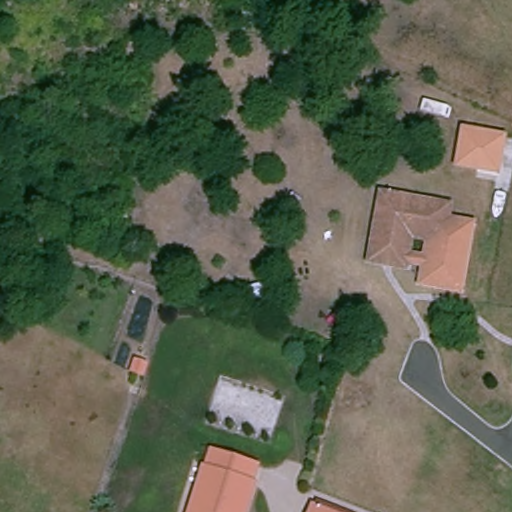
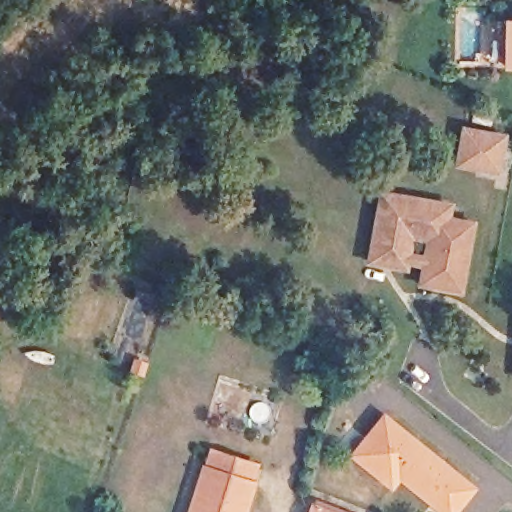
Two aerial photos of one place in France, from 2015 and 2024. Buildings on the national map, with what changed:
new [(512,68),(501,68),(502,17),(512,18),(512,68)]
unchanged [(507,135),(501,175),(456,169),(462,125),(507,135)]
unchanged [(377,190),(454,204),(452,215),(481,221),(467,297),(418,288),(420,266),(408,264),(407,272),(367,265),(377,190)]
new [(458,512),(438,512),(399,481),(391,490),(348,455),(383,410),(477,487),(458,512)]
unchanged [(252,482),(256,483),(247,512),(187,512),(201,466),(204,467),(209,448),(258,465),(252,482)]
unchanged [(314,512),(314,510),(320,512),(314,512)]

